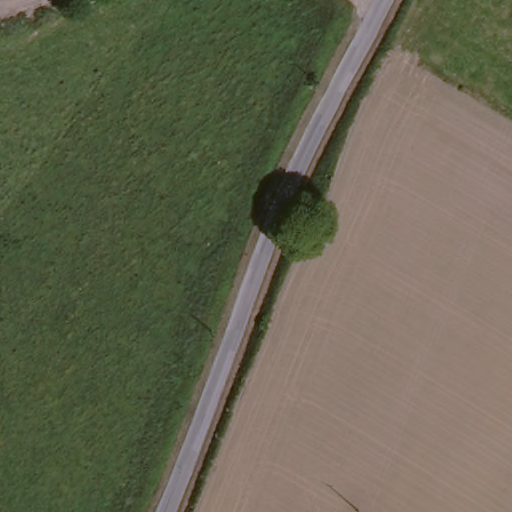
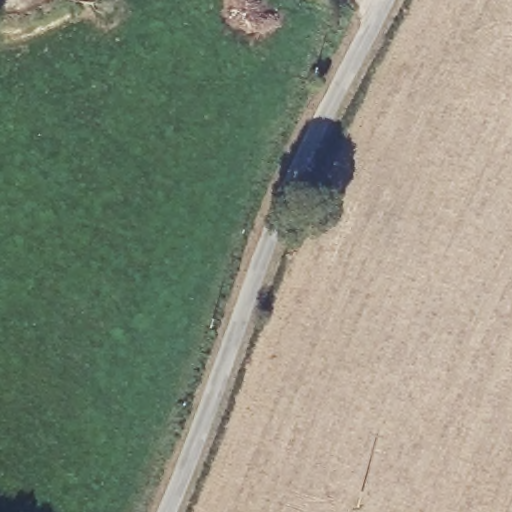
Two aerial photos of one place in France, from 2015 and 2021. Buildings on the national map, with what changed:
[]

